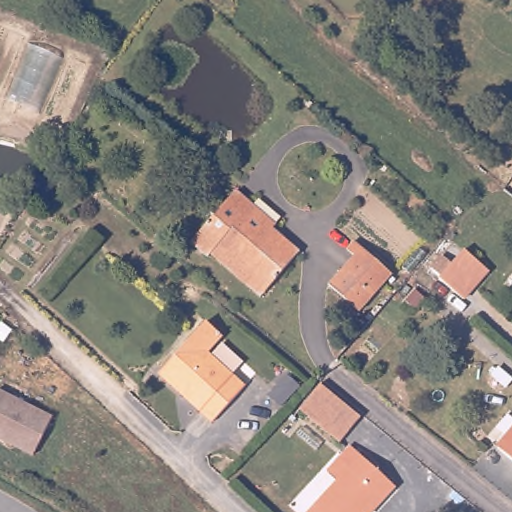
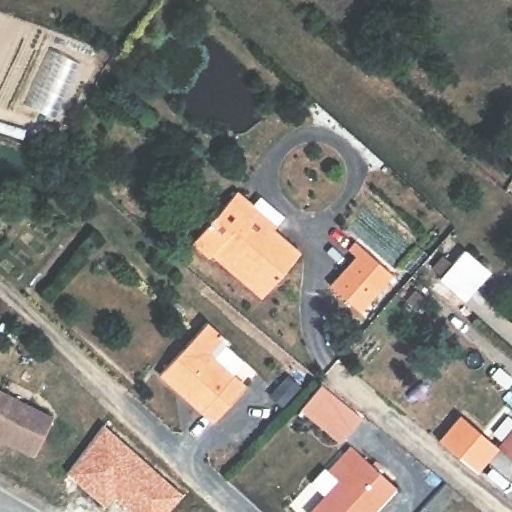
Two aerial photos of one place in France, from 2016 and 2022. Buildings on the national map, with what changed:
unchanged [(189,246),(234,192),(252,208),(249,211),(299,255),(265,293),(215,250),(206,261),(189,246)]
unchanged [(332,282),(351,260),(344,253),(355,240),(392,271),(361,308),(332,282)]
unchanged [(440,281),(465,251),(489,272),(465,301),(440,281)]
unchanged [(195,340),(249,389),(217,426),(162,376),(195,340)]
unchanged [(358,412),(344,432),(310,406),(324,387),(358,412)]
unchanged [(36,453),(0,434),(0,388),(56,416),(36,453)]
unchanged [(494,447),(512,426),(512,462),(494,447)]
new [(131,447),(189,494),(175,512),(139,512),(121,498),(113,508),(74,477),(96,444),(107,428),(131,447)]
unchanged [(364,512),(364,511),(363,512),(312,512),(340,481),(326,469),(337,457),(350,443),(397,486),(373,512),(364,512)]

